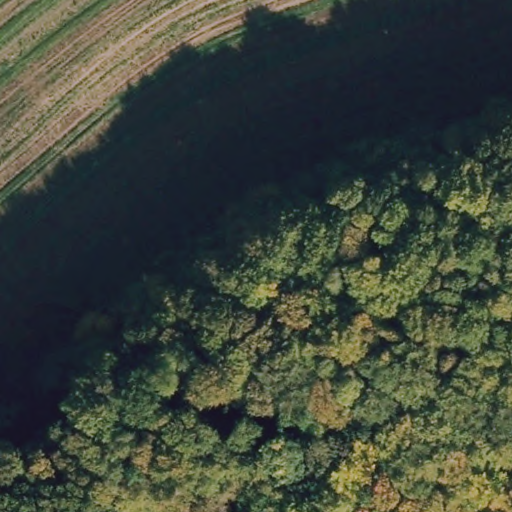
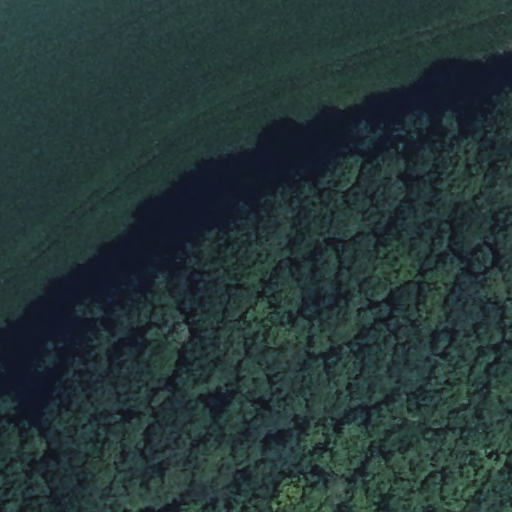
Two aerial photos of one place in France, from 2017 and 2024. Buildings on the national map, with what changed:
[]

